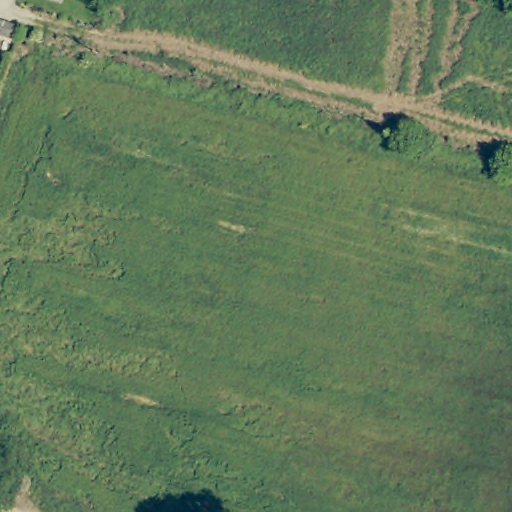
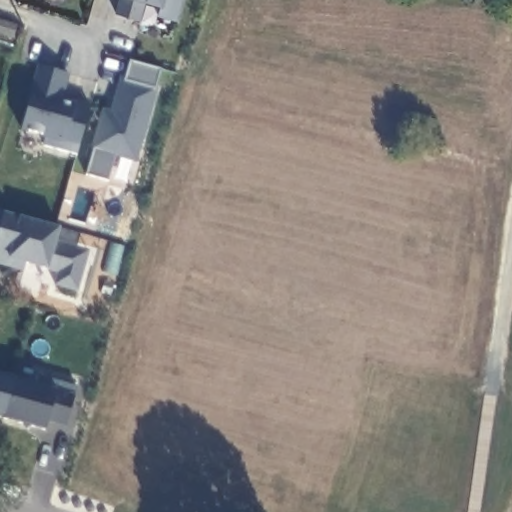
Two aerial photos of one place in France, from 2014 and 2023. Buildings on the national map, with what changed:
new [(158,16),(161,6),(144,2),(140,21),(114,14),(117,0),(181,0),(175,20),(158,16)]
unchanged [(13,39),(0,35),(0,19),(18,25),(13,39)]
new [(109,181),(87,175),(92,154),(86,152),(99,103),(106,105),(115,76),(125,79),(130,60),(159,69),(154,87),(159,89),(132,190),(109,181)]
new [(43,146),(45,138),(20,131),(38,66),(69,75),(62,96),(89,104),(75,155),(43,146)]
new [(58,273),(44,268),(24,263),(23,270),(0,264),(0,212),(3,212),(60,227),(55,242),(89,251),(78,292),(54,285),(58,273)]
new [(46,422),(44,427),(0,416),(0,372),(41,384),(42,375),(79,385),(66,428),(46,422)]

